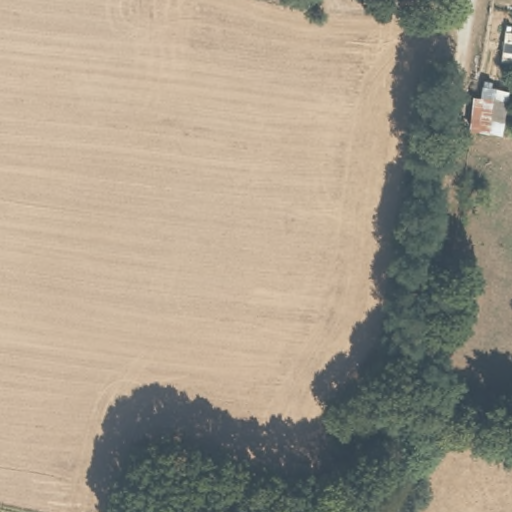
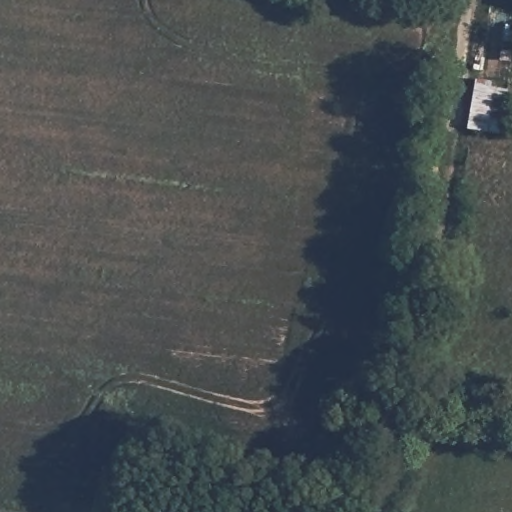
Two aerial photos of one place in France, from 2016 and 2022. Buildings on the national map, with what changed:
unchanged [(493,101),(506,102),(502,138),(488,133),(493,101)]

